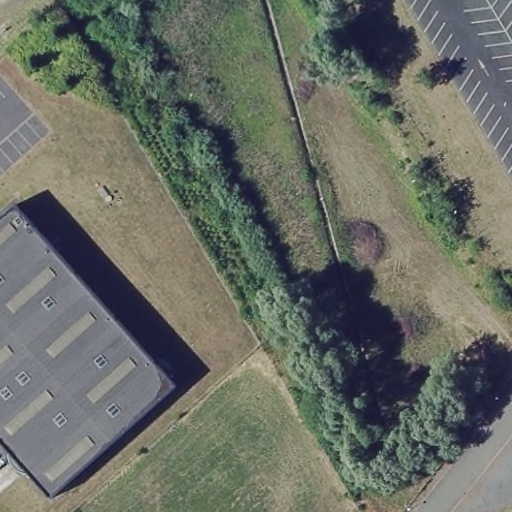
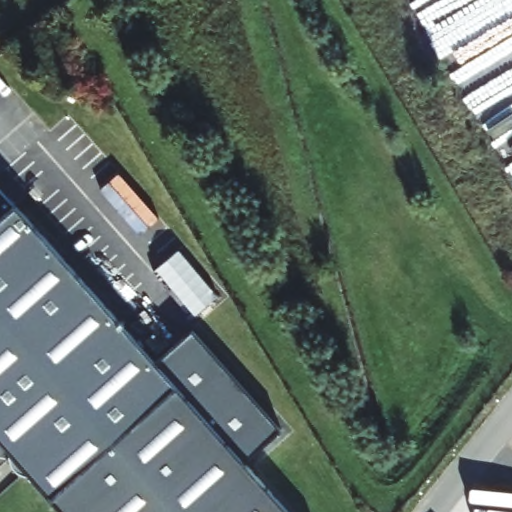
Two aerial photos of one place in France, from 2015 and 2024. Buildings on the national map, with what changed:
new [(18,206),(0,220),(0,187),(18,206)]
unchanged [(29,477),(20,475),(15,471),(9,461),(7,452),(0,445),(0,220),(18,206),(177,387),(48,500),(29,477)]
new [(284,426),(245,461),(289,512),(59,512),(48,500),(177,387),(156,362),(192,331),(284,426)]

